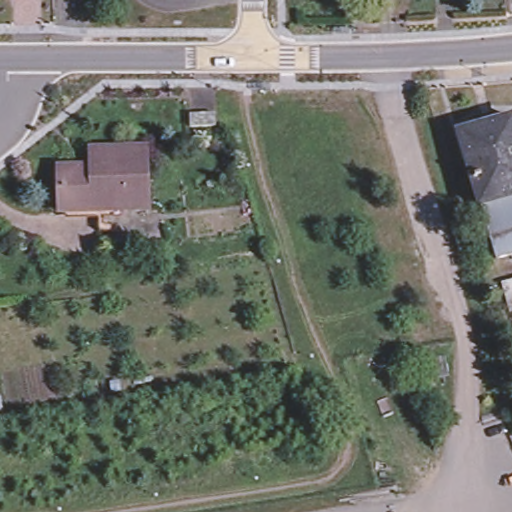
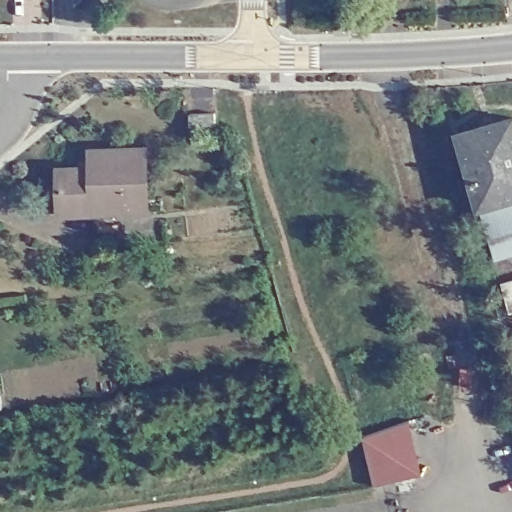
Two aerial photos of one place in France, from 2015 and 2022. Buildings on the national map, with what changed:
unchanged [(201,25),(200,0),(236,0),(238,21),(201,25)]
unchanged [(511,115),(512,118),(512,194),(480,205),(456,131),(511,115)]
unchanged [(200,116),(215,116),(216,130),(190,130),(190,129),(190,117),(200,116)]
unchanged [(51,187),(51,170),(90,170),(90,159),(90,150),(141,150),(142,157),(142,199),(58,204),(58,187),(51,187)]
unchanged [(488,233),(480,205),(512,194),(512,250),(495,255),(488,233)]
unchanged [(143,214),(58,214),(58,204),(142,199),(143,214)]
unchanged [(512,319),(502,286),(512,283),(512,319)]
new [(365,437),(412,421),(423,473),(375,485),(365,437)]

